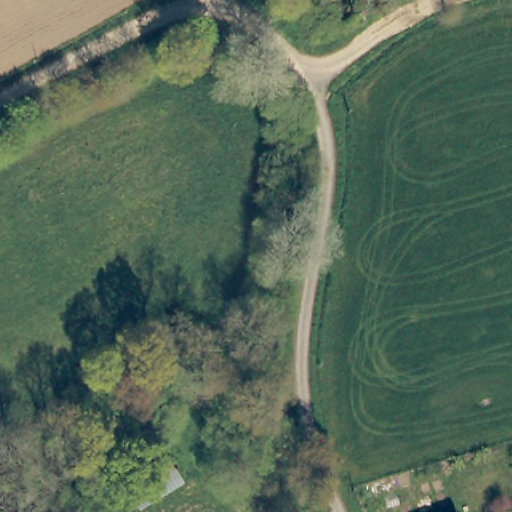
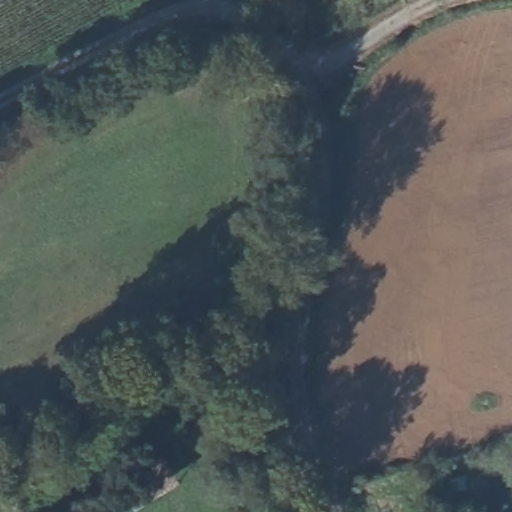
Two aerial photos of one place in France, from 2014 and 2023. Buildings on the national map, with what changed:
unchanged [(137,510),(118,487),(155,457),(177,478),(137,510)]

